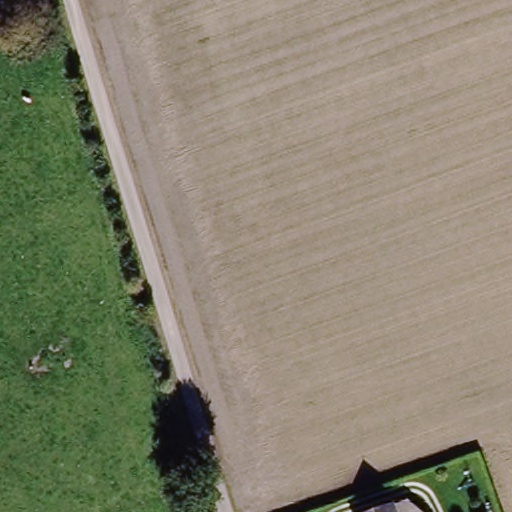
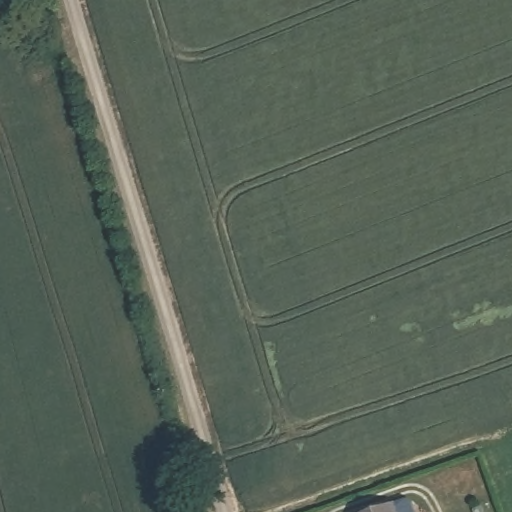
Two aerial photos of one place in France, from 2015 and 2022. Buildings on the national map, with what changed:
unchanged [(408,501),(420,512),(374,512),(408,501)]

